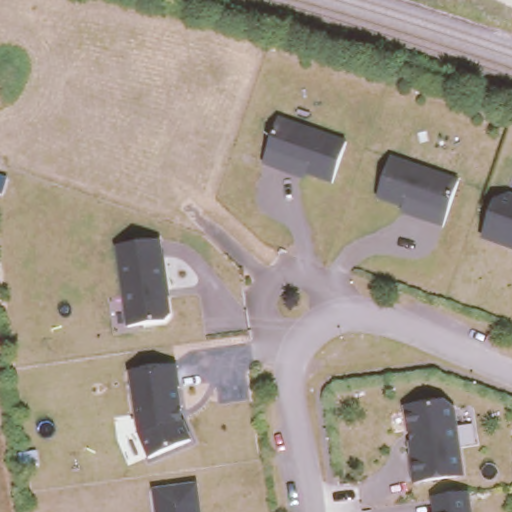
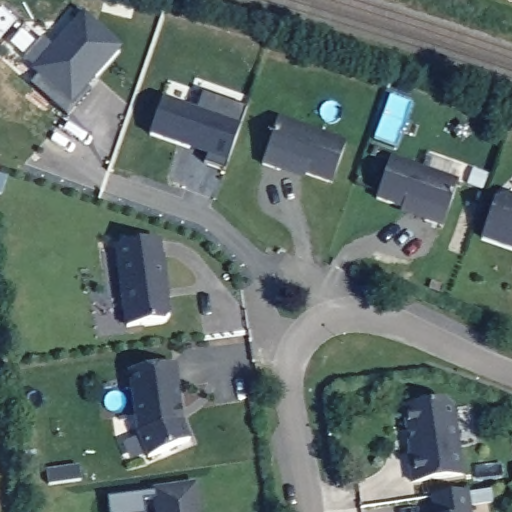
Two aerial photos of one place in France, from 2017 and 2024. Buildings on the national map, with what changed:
new [(30,86),(37,79),(29,72),(31,70),(21,62),(42,39),(52,48),(81,13),(122,50),(87,90),(90,93),(67,120),(30,86)]
new [(191,148),(150,134),(162,99),(195,111),(202,92),(247,107),(225,170),(205,163),(210,150),(208,154),(191,148)]
unchanged [(347,140),(332,183),(304,174),(303,180),(260,167),(278,118),(347,140)]
unchanged [(458,180),(442,227),(399,213),(392,202),(376,196),(390,158),(458,180)]
unchanged [(482,240),(498,191),(512,195),(512,252),(482,240)]
unchanged [(161,240),(172,318),(125,325),(115,246),(161,240)]
unchanged [(150,457),(137,431),(129,370),(175,367),(180,417),(192,436),(150,457)]
unchanged [(447,401),(455,406),(463,476),(412,483),(403,406),(447,401)]
unchanged [(201,512),(154,512),(151,489),(197,483),(201,512)]
unchanged [(470,493),(472,512),(433,512),(432,498),(470,493)]

